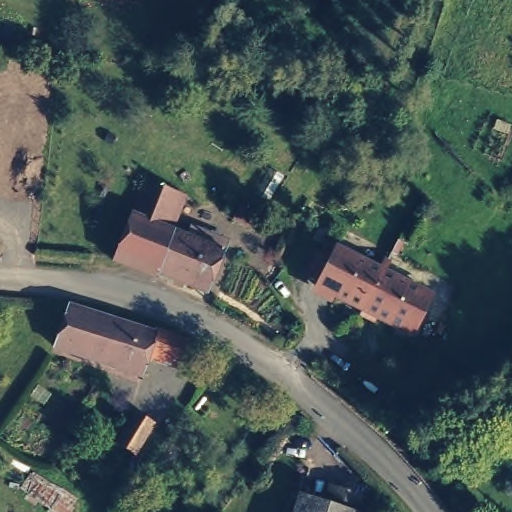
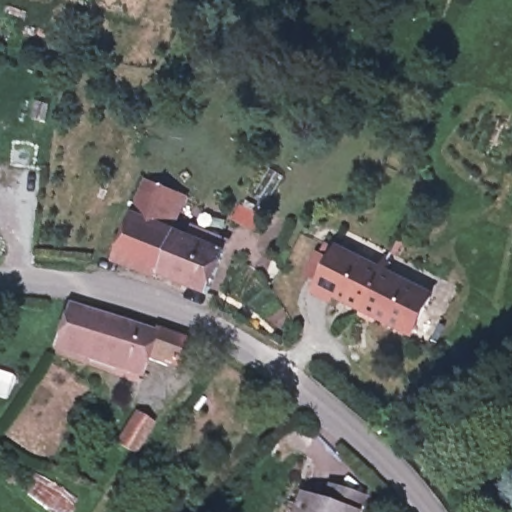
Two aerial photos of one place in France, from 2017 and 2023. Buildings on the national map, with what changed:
unchanged [(142,178),(174,189),(161,225),(183,233),(188,221),(223,235),(203,292),(153,271),(151,273),(110,259),(113,252),(142,178)]
unchanged [(361,262),(369,244),(370,245),(361,262),(409,287),(389,325),(341,300),(338,306),(337,306),(340,300),(296,277),(317,240),(361,262)]
unchanged [(151,339),(154,336),(183,345),(175,368),(146,360),(140,379),(51,350),(63,312),(151,339)]
unchanged [(131,452),(114,440),(127,421),(133,411),(151,423),(146,430),(131,452)]
unchanged [(351,497),(347,512),(287,512),(292,498),(316,505),(323,487),(351,497)]

